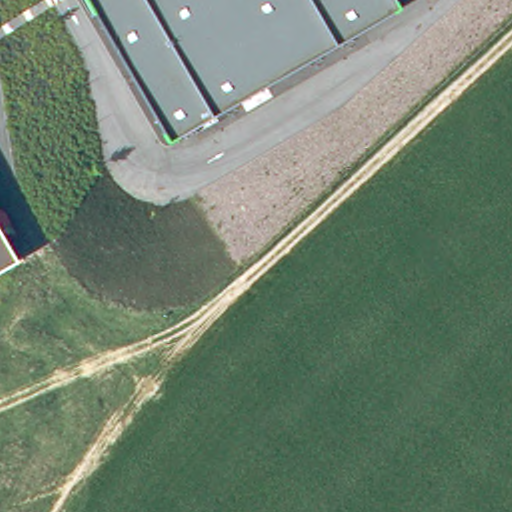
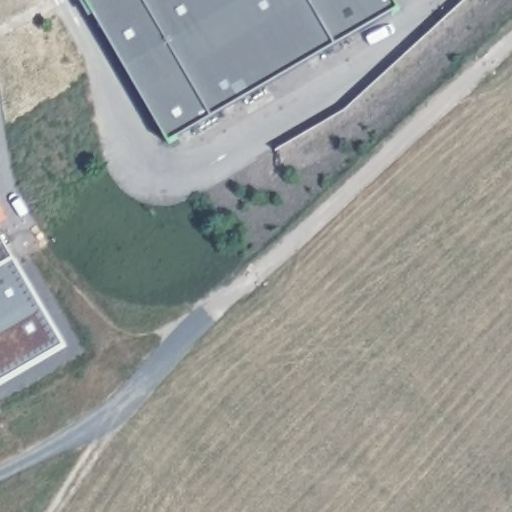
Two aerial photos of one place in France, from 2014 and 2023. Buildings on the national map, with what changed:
unchanged [(170,142),(90,0),(396,0),(402,9),(170,142)]
unchanged [(13,258),(0,266),(0,234),(13,258)]
new [(67,344),(0,383),(0,266),(13,258),(67,344)]

